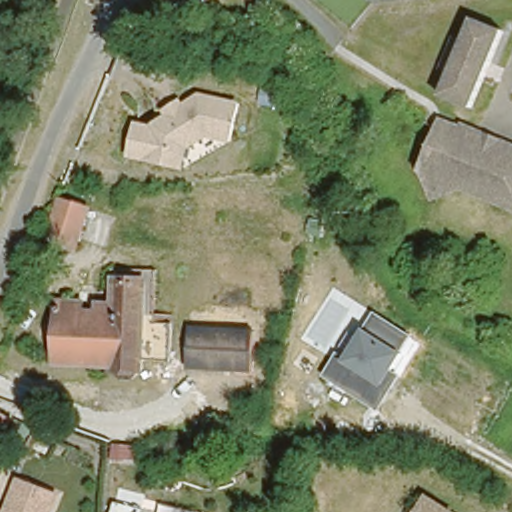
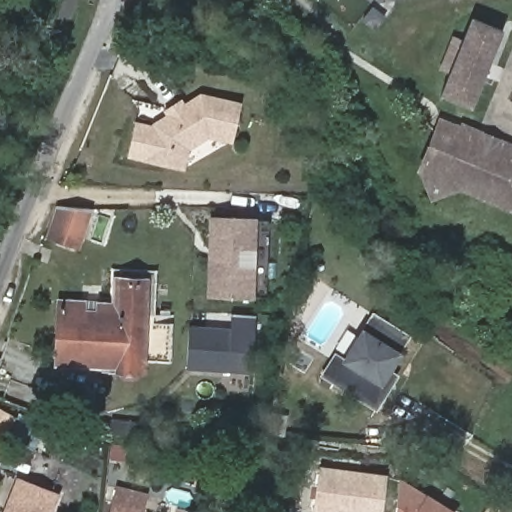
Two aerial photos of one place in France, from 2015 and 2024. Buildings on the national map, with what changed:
unchanged [(504,32),(473,108),(442,96),(451,72),(443,69),(455,41),(463,44),(474,19),(504,32)]
unchanged [(151,46),(149,57),(129,53),(131,42),(151,46)]
unchanged [(233,145),(207,139),(189,151),(185,171),(125,160),(134,121),(154,124),(165,115),(162,110),(183,97),(187,101),(202,92),(241,102),(233,145)]
unchanged [(512,145),(512,204),(503,200),(464,183),(439,194),(426,166),(441,129),(446,119),(461,124),(496,139),(512,145)]
unchanged [(74,242),(45,232),(59,194),(88,205),(74,242)]
new [(206,298),(209,217),(258,218),(254,298),(206,298)]
unchanged [(64,302),(84,303),(84,317),(100,318),(101,310),(118,311),(119,285),(148,287),(144,373),(120,372),(120,368),(61,364),(64,302)]
unchanged [(379,411),(320,376),(335,352),(344,358),(363,328),(375,312),(412,336),(400,352),(404,355),(394,371),(399,376),(379,411)]
unchanged [(252,372),(187,370),(189,327),(254,329),(252,372)]
unchanged [(114,461),(115,443),(144,446),(143,462),(114,461)]
new [(327,512),(320,511),(328,468),(394,479),(389,512),(327,512)]
unchanged [(4,512),(16,477),(59,493),(53,512),(4,512)]
new [(449,512),(397,512),(401,483),(449,512)]
new [(108,512),(115,485),(148,492),(143,512),(108,512)]
demolished [(424,512),(437,491),(464,506),(461,512),(420,512),(422,510),(424,512)]
unchanged [(199,512),(198,512),(178,512),(179,507),(199,512)]

